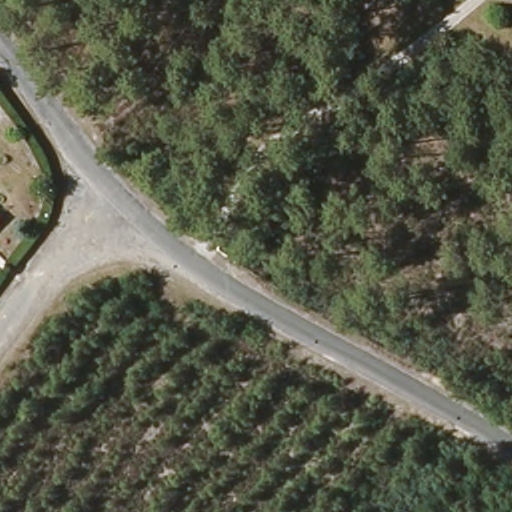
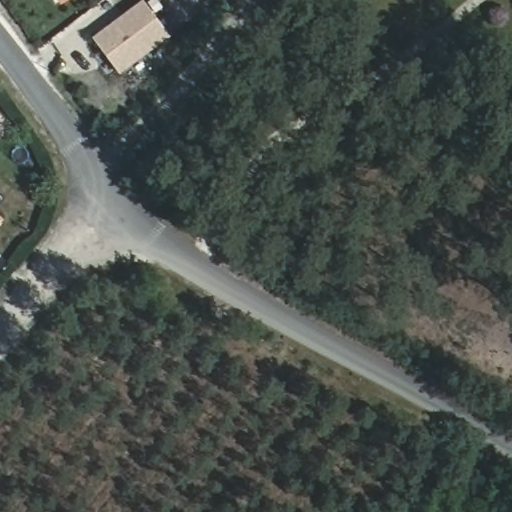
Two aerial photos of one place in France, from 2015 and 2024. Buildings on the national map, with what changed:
new [(145,3),(172,35),(122,75),(95,43),(145,3)]
unchanged [(0,223),(0,220),(1,221),(0,223)]

